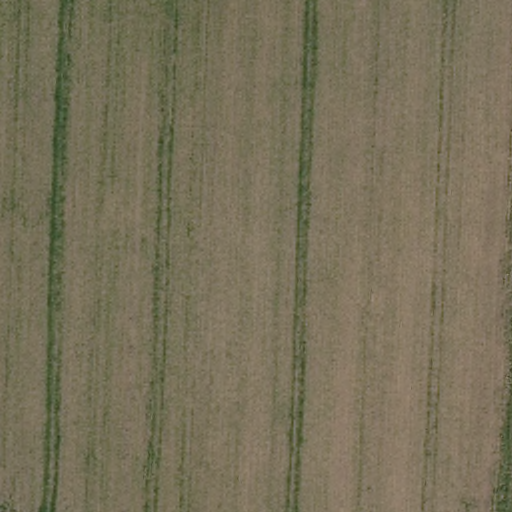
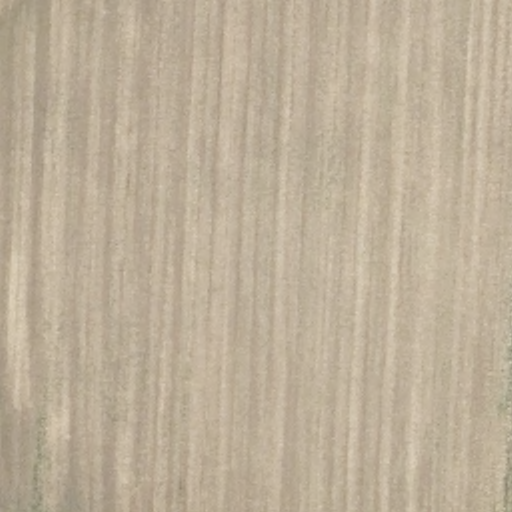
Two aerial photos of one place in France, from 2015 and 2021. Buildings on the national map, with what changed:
[]

